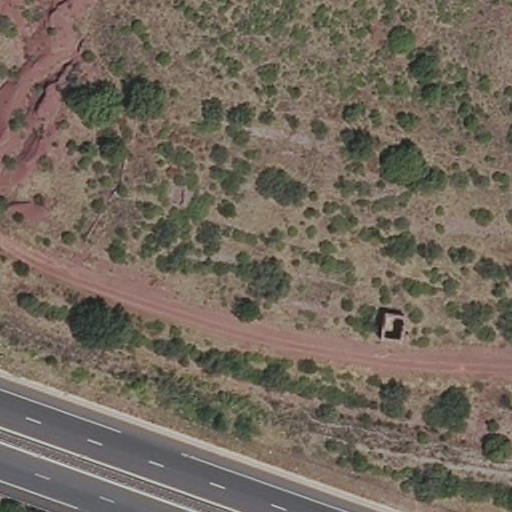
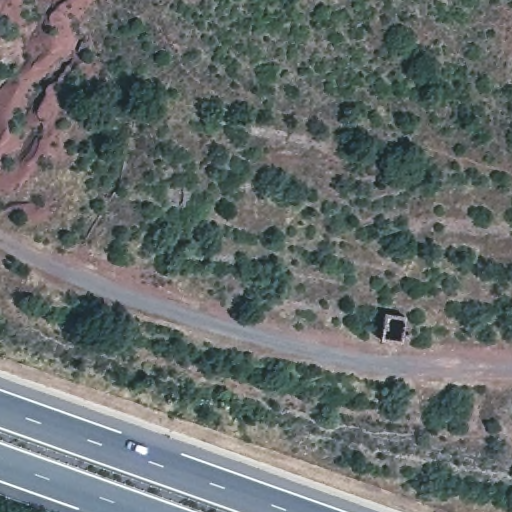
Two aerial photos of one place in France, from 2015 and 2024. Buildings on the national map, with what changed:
unchanged [(186,184),(186,210),(165,210),(165,185),(186,184)]

